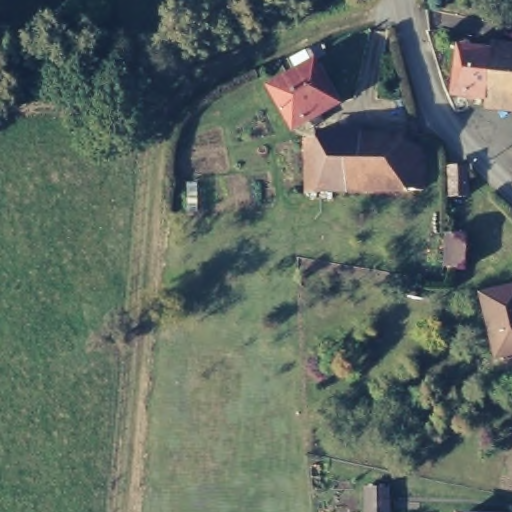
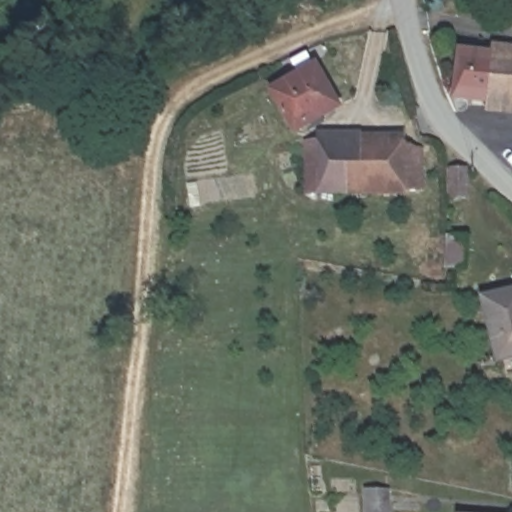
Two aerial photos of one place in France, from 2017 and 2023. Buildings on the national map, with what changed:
unchanged [(464,96),(468,52),(512,57),(512,102),(464,96)]
unchanged [(311,71),(332,109),(288,132),(267,94),(311,71)]
unchanged [(301,144),(311,144),(398,142),(399,151),(416,151),(418,196),(313,197),(302,197),(301,144)]
unchanged [(471,234),(468,270),(442,269),(445,233),(471,234)]
unchanged [(494,365),(477,294),(512,285),(512,360),(494,365)]
unchanged [(373,489),(370,512),(349,512),(353,487),(373,489)]

